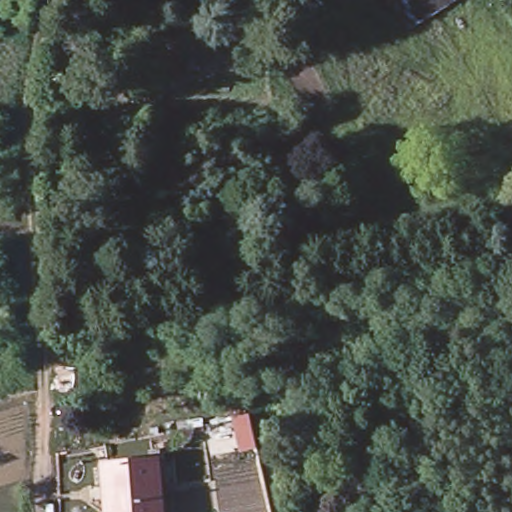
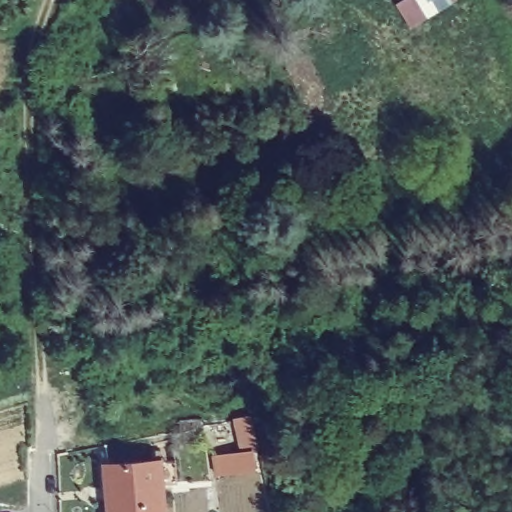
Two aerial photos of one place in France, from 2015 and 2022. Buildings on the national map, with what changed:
unchanged [(415,28),(400,6),(410,0),(457,0),(459,1),(415,28)]
unchanged [(105,469),(155,465),(174,463),(175,488),(157,489),(160,512),(109,512),(105,469)]

